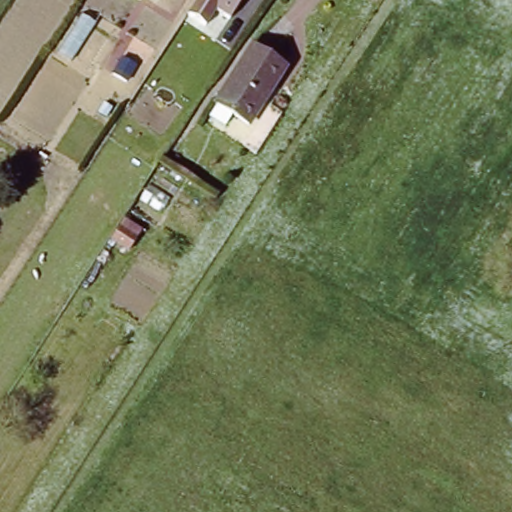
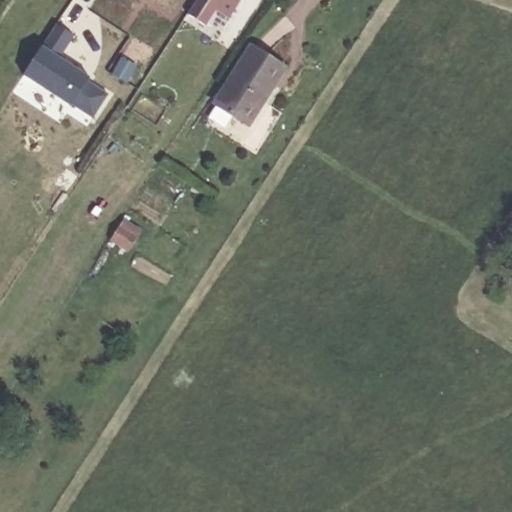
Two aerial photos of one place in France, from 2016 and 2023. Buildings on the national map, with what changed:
unchanged [(236,0),(226,16),(213,8),(204,21),(187,10),(193,0),(236,0)]
new [(56,25),(75,36),(61,57),(92,78),(89,82),(109,96),(94,119),(73,105),(71,107),(23,76),(56,25)]
unchanged [(285,70),(247,127),(213,106),(251,48),(285,70)]
unchanged [(141,70),(132,82),(120,74),(128,61),(141,70)]
unchanged [(135,239),(128,249),(111,238),(118,227),(135,239)]

